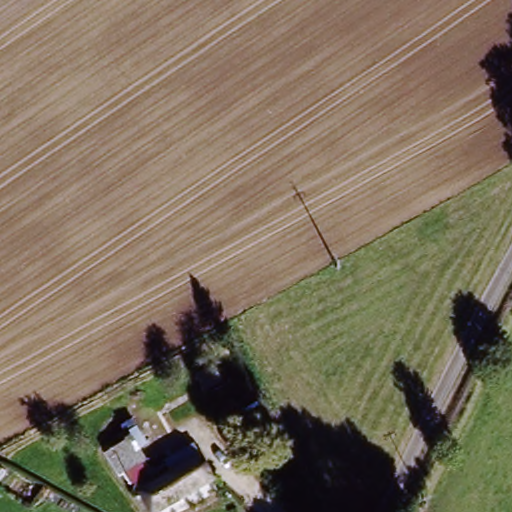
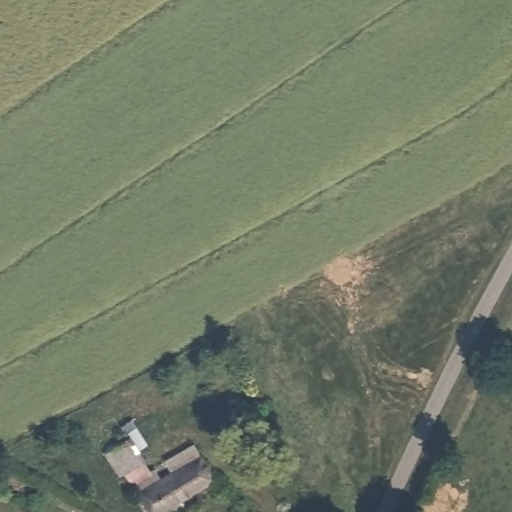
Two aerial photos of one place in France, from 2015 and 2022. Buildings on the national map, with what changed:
unchanged [(155,512),(144,512),(135,497),(168,477),(162,466),(187,451),(205,483),(155,512)]

